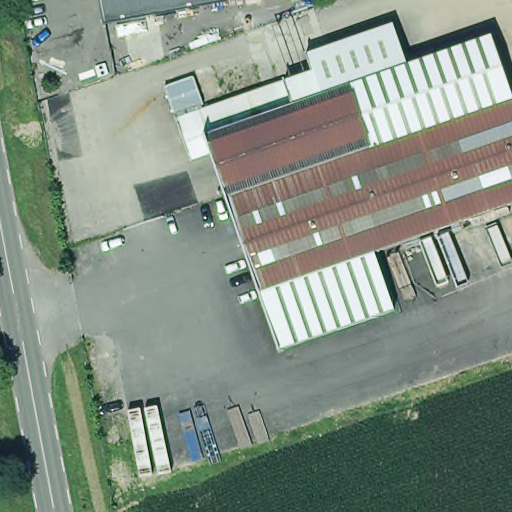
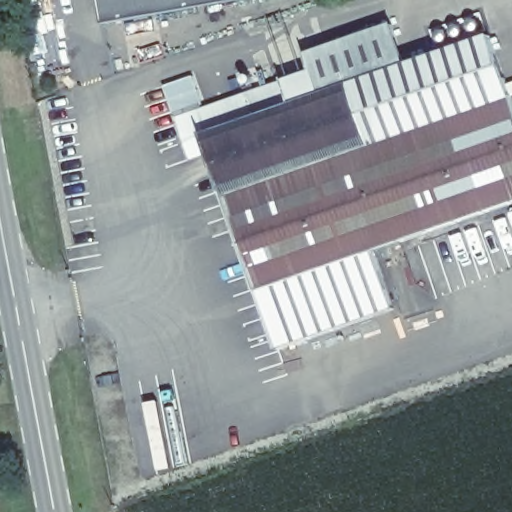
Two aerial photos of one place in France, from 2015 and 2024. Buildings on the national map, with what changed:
unchanged [(104,0),(233,0),(109,25),(104,0)]
unchanged [(211,151),(192,158),(179,119),(206,109),(311,71),(306,55),(394,26),(406,64),(407,67),(349,85),(369,145),(226,194),(211,151)]
unchanged [(491,35),(512,96),(369,145),(349,85),(407,67),(406,64),(491,35)]
unchanged [(168,85),(196,76),(206,104),(204,105),(206,109),(179,119),(168,85)]
unchanged [(372,248),(259,287),(226,194),(369,145),(512,96),(512,201),(372,248)]
unchanged [(392,305),(279,344),(259,287),(372,248),(392,305)]

